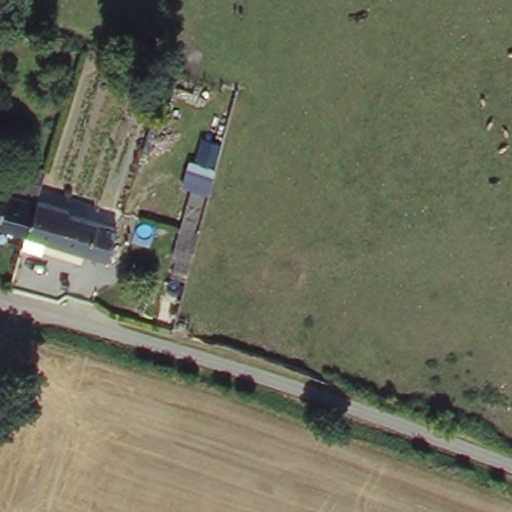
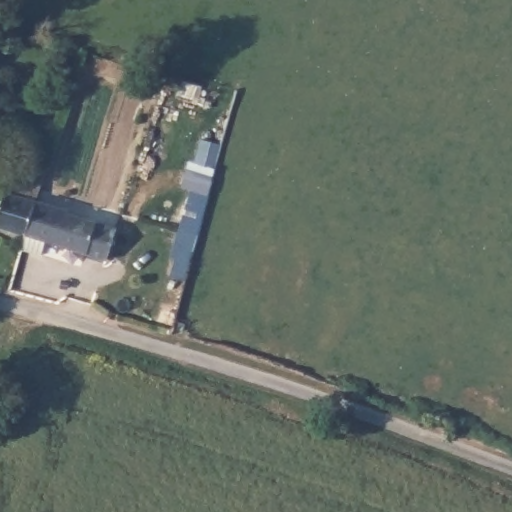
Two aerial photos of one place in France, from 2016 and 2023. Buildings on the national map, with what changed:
unchanged [(208,197),(188,191),(177,187),(185,163),(192,166),(200,142),(216,147),(209,172),(215,174),(208,197)]
unchanged [(0,235),(0,205),(5,188),(32,196),(31,200),(18,240),(0,235)]
unchanged [(190,265),(184,283),(169,280),(174,260),(170,259),(188,191),(208,197),(190,265)]
unchanged [(101,272),(91,268),(41,249),(36,265),(13,257),(18,240),(31,200),(59,210),(59,214),(105,232),(114,236),(101,272)]

